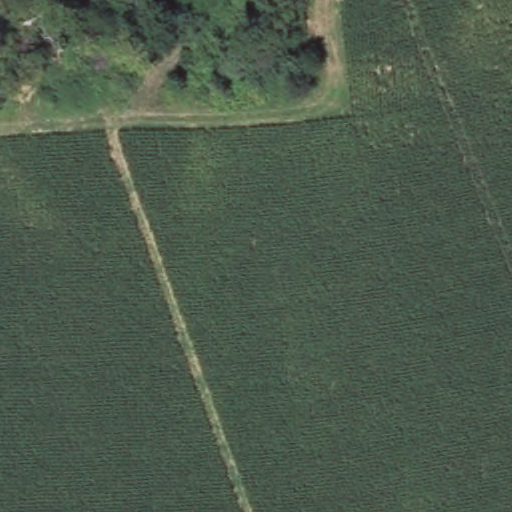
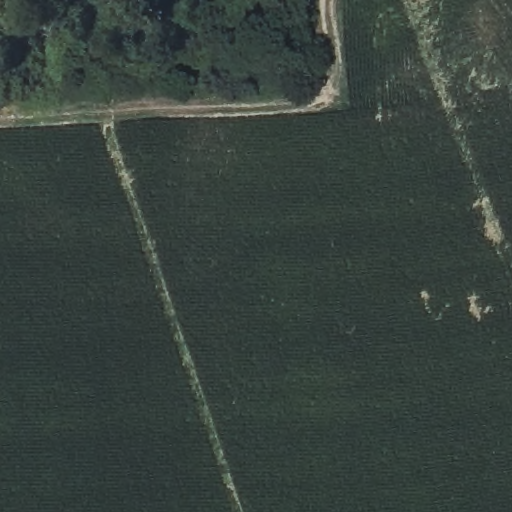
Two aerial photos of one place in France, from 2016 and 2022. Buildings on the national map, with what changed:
unchanged [(37,10),(16,17),(12,0),(35,0),(37,10)]

